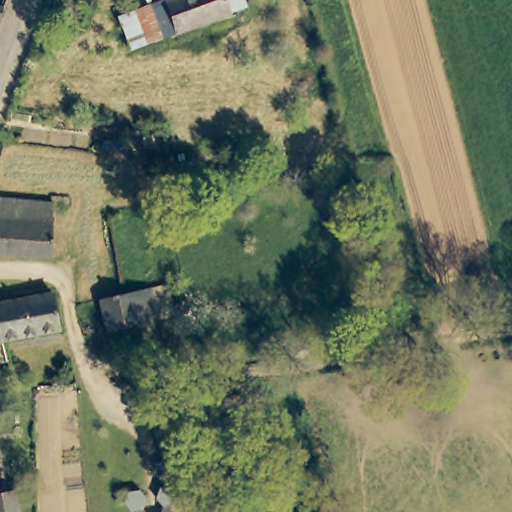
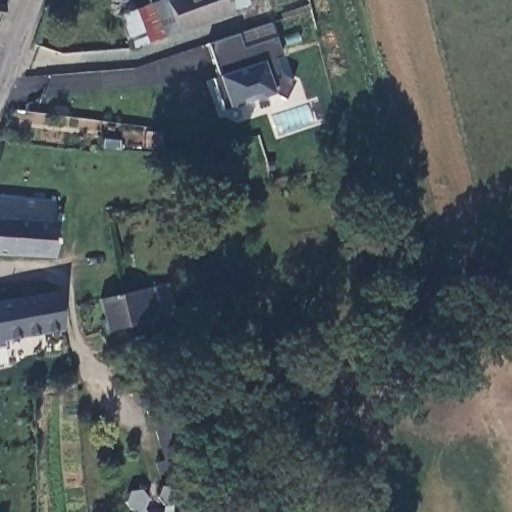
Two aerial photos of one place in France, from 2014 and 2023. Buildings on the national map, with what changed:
unchanged [(122,15),(163,0),(231,0),(235,13),(131,48),(122,15)]
new [(240,48),(274,37),(280,57),(272,59),(278,75),(292,81),(283,99),(272,95),(222,109),(212,78),(217,77),(207,44),(236,35),(240,48)]
unchanged [(0,199),(50,203),(49,211),(47,257),(0,253),(0,199)]
unchanged [(152,282),(162,315),(114,328),(105,296),(124,290),(132,288),(152,282)]
unchanged [(60,330),(4,340),(0,324),(0,303),(53,295),(60,330)]
unchanged [(0,357),(0,324),(4,340),(8,356),(0,357)]
unchanged [(168,465),(156,417),(175,412),(187,461),(168,465)]
unchanged [(174,502),(163,504),(157,496),(160,486),(172,485),(177,493),(174,502)]
unchanged [(132,508),(125,500),(129,491),(141,489),(147,497),(143,507),(132,508)]

